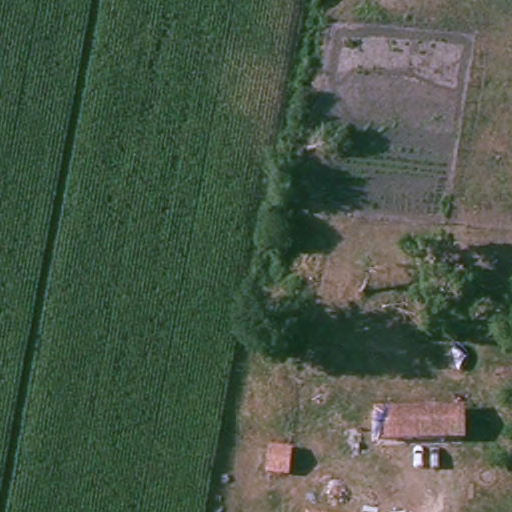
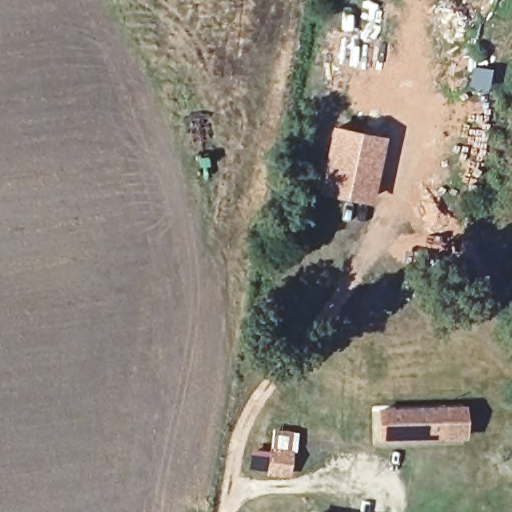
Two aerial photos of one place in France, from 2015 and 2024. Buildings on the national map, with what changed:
new [(385,136),(372,204),(317,192),(331,125),(385,136)]
unchanged [(458,410),(459,437),(380,440),(379,412),(458,410)]
unchanged [(292,449),(288,470),(270,467),(273,447),(292,449)]

